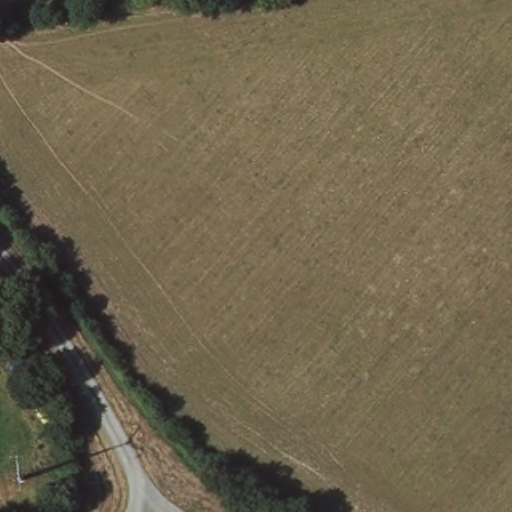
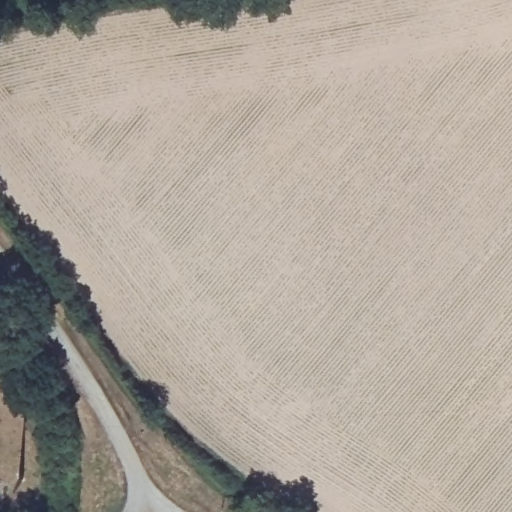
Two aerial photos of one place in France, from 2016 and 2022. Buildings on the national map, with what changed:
[]

